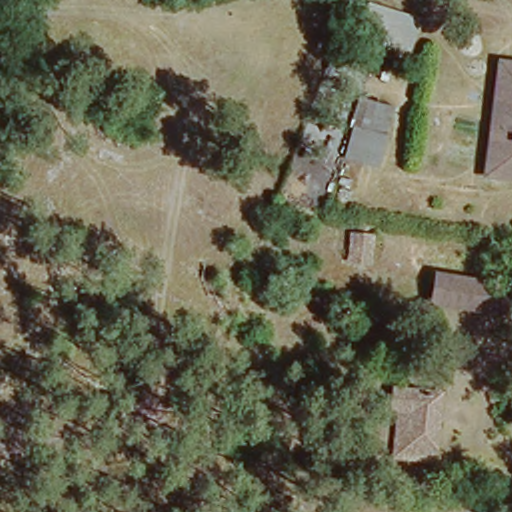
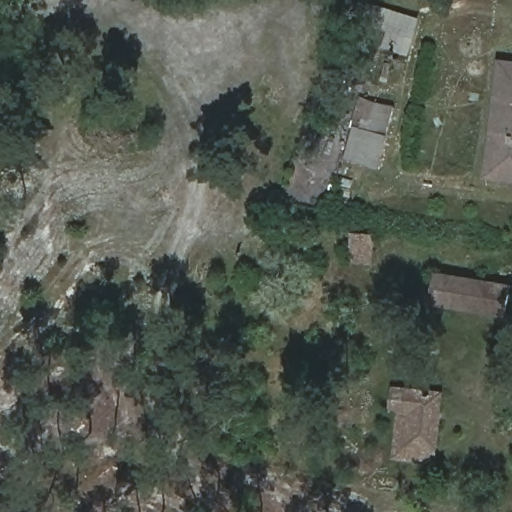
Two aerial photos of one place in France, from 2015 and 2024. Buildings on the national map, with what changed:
unchanged [(406,39),(358,17),(367,0),(381,0),(419,14),(406,39)]
unchanged [(512,168),(491,165),(501,64),(512,65),(512,168)]
unchanged [(340,156),(352,120),(346,117),(359,92),(391,105),(382,129),(386,131),(376,166),(340,156)]
unchanged [(369,263),(345,255),(347,228),(372,233),(369,263)]
unchanged [(500,309),(428,300),(431,268),(502,278),(500,309)]
unchanged [(443,388),(432,457),(388,450),(395,402),(376,400),(379,377),(443,388)]

